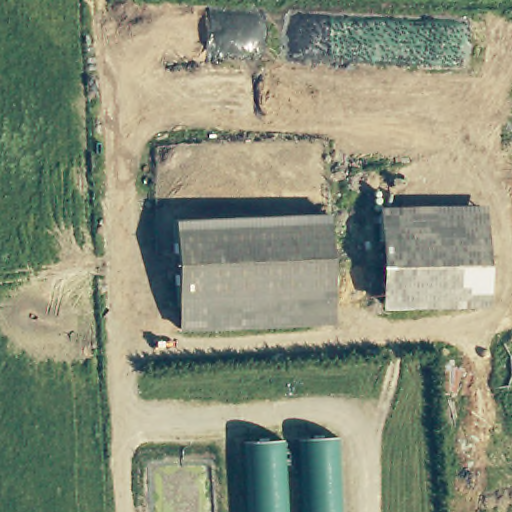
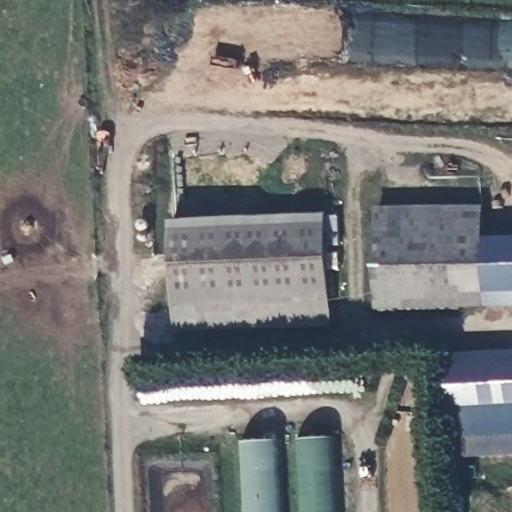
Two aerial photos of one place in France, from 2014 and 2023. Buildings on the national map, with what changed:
unchanged [(377,208),(484,206),(486,308),(380,310),(377,208)]
unchanged [(332,308),(179,317),(174,231),(327,222),(332,308)]
new [(485,239),(512,237),(512,292),(486,293),(485,239)]
new [(444,353),(512,349),(512,434),(449,438),(444,353)]
unchanged [(344,512),(304,512),(300,447),(340,445),(344,512)]
unchanged [(244,450),(285,447),(289,512),(248,512),(244,450)]

